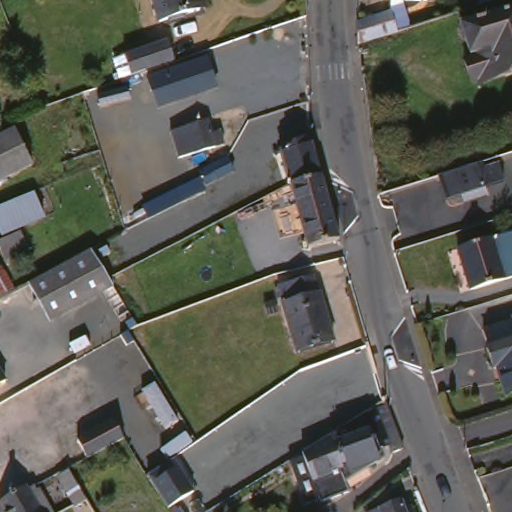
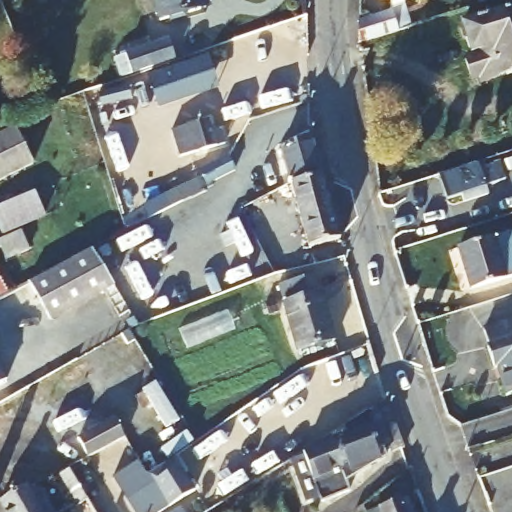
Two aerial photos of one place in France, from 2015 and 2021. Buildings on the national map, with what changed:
unchanged [(200,13),(155,26),(147,0),(197,0),(200,13)]
unchanged [(401,32),(349,49),(349,27),(381,17),(380,4),(372,4),(372,0),(420,0),(420,5),(411,4),(392,4),(401,32)]
demolished [(477,0),(495,0),(478,6),(477,0)]
unchanged [(465,81),(458,60),(465,58),(455,26),(512,8),(512,73),(473,85),(471,79),(465,81)]
unchanged [(164,65),(129,77),(122,56),(166,42),(172,63),(164,65)]
unchanged [(150,81),(167,75),(199,66),(204,84),(174,94),(155,100),(150,81)]
unchanged [(177,158),(173,144),(170,132),(192,125),(196,137),(200,150),(177,158)]
unchanged [(27,165),(0,177),(0,132),(10,128),(27,165)]
unchanged [(282,148),(277,139),(291,132),(296,141),(305,136),(317,178),(284,183),(275,152),(282,148)]
unchanged [(205,184),(198,171),(226,157),(233,170),(205,184)]
unchanged [(437,178),(477,166),(480,173),(494,169),(500,186),(480,192),(482,200),(458,207),(455,199),(441,204),(433,179),(437,178)]
unchanged [(295,220),(284,183),(317,178),(335,240),(303,248),(295,220)]
unchanged [(41,224),(16,236),(21,253),(0,262),(0,208),(32,199),(41,224)]
unchanged [(467,288),(457,247),(512,230),(512,275),(467,288)]
unchanged [(54,313),(39,287),(81,263),(96,288),(54,313)]
unchanged [(315,298),(328,345),(292,356),(275,293),(309,282),(313,298),(315,298)]
unchanged [(482,329),(512,319),(512,393),(504,396),(495,369),(493,370),(485,347),(488,346),(482,329)]
unchanged [(0,372),(7,381),(0,385),(0,372)]
unchanged [(77,440),(112,421),(123,439),(87,457),(77,440)]
unchanged [(297,459),(330,440),(361,429),(373,468),(360,472),(365,480),(342,495),(315,503),(311,495),(298,499),(293,485),(285,489),(275,466),(297,459)]
new [(138,462),(147,478),(175,460),(195,492),(162,512),(134,512),(112,478),(138,462)]
unchanged [(50,479),(61,473),(80,504),(69,510),(50,479)]
demolished [(169,478),(182,498),(172,503),(160,484),(169,478)]
unchanged [(0,512),(0,503),(21,491),(22,493),(34,512),(0,512)]
unchanged [(394,512),(371,512),(391,504),(394,512)]
demolished [(181,512),(172,512),(178,508),(181,512)]

